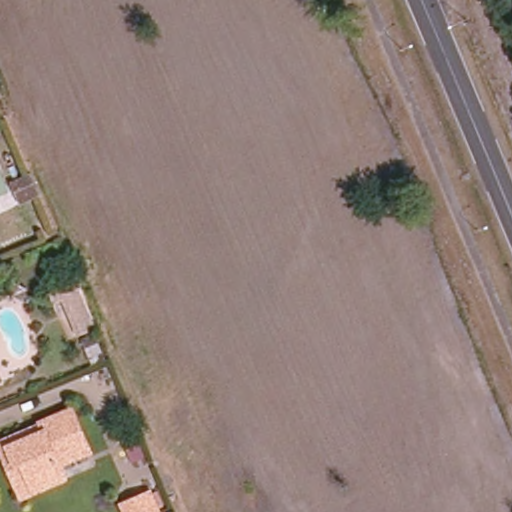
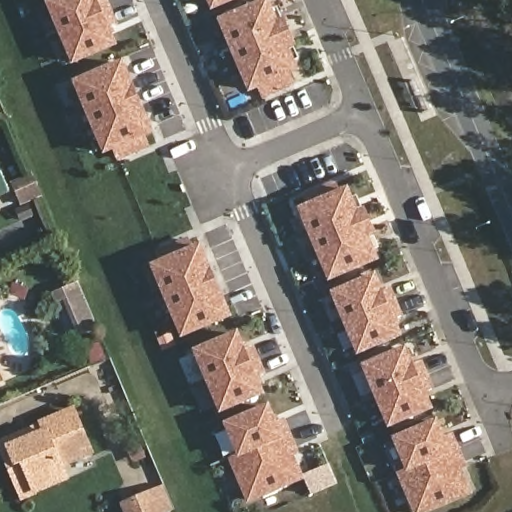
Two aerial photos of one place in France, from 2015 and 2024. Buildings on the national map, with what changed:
new [(72,64),(46,0),(99,0),(106,0),(116,25),(113,27),(120,45),(72,64)]
new [(211,11),(206,0),(237,0),(211,11)]
new [(262,99),(258,90),(248,94),(218,19),(261,0),(270,0),(273,10),(277,7),(284,17),(297,45),(300,58),(296,60),(301,70),(293,74),(296,85),(262,99)]
demolished [(0,9),(5,7),(11,26),(4,29),(0,22),(0,9)]
new [(146,136),(151,149),(119,161),(116,150),(103,155),(73,81),(126,60),(156,132),(146,136)]
new [(376,251),(381,260),(329,281),(298,207),(309,202),(306,195),(336,182),(340,190),(350,185),(354,197),(358,195),(365,206),(377,235),(380,247),(376,251)]
new [(193,246),(203,242),(234,318),(182,339),(151,265),(161,261),(156,250),(188,237),(193,246)]
new [(396,320),(403,336),(357,355),(331,291),(378,272),(385,290),(392,286),(405,316),(396,320)]
demolished [(139,326),(122,332),(107,297),(98,301),(93,290),(120,280),(139,326)]
new [(78,281),(98,328),(81,334),(66,300),(56,303),(52,292),(78,281)]
new [(260,380),(266,394),(220,413),(193,349),(240,330),(247,348),(254,344),(267,375),(260,380)]
new [(435,410),(389,428),(362,364),(408,345),(416,365),(422,360),(434,390),(428,394),(435,410)]
new [(284,415),(301,452),(295,455),(305,479),(248,504),(229,460),(238,455),(223,421),(271,403),(277,418),(284,415)]
unchanged [(1,445),(43,427),(76,415),(91,455),(61,468),(66,482),(35,495),(21,500),(1,445)]
new [(473,493),(428,512),(412,512),(397,475),(407,471),(393,438),(439,420),(447,437),(454,434),(468,465),(462,467),(473,493)]
unchanged [(146,478),(154,501),(158,512),(128,512),(119,489),(146,478)]

